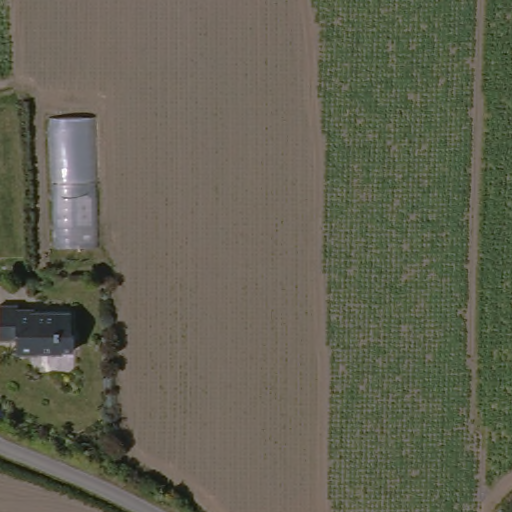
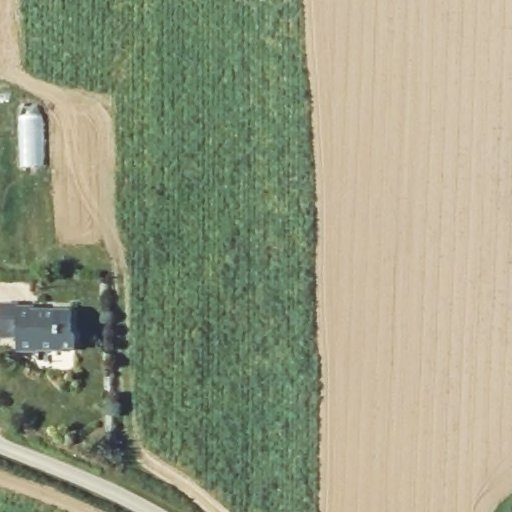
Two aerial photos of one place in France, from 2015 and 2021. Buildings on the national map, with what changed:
new [(89,116),(94,245),(59,245),(56,116),(89,116)]
unchanged [(77,334),(78,347),(68,348),(68,351),(22,354),(21,338),(3,340),(3,305),(22,303),(23,311),(73,310),(74,331),(77,334)]

